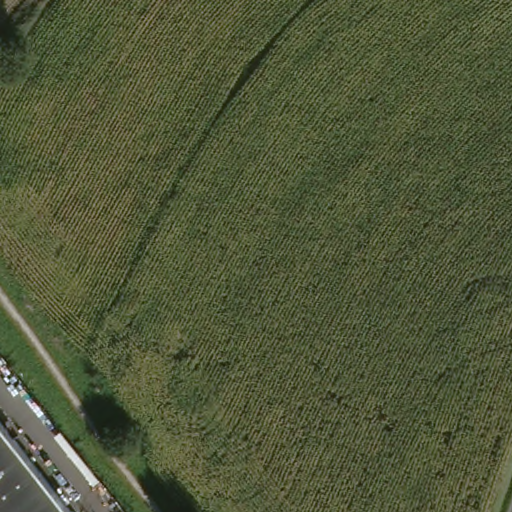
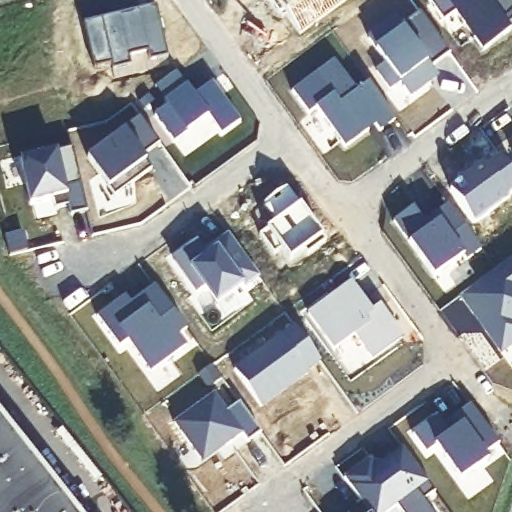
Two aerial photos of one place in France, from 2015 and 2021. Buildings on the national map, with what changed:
new [(299,33),(282,9),(278,12),(269,0),(346,0),(299,33)]
new [(512,1),(512,14),(501,21),(509,32),(483,51),(455,13),(442,22),(427,0),(511,0),(512,1)]
new [(155,7),(167,58),(148,63),(146,54),(128,58),(130,68),(112,72),(110,66),(93,71),(82,25),(155,7)]
new [(395,20),(400,28),(419,14),(449,55),(430,69),(434,75),(427,79),(430,83),(409,98),(399,84),(389,91),(376,72),(386,65),(368,40),(395,20)]
new [(344,148),(316,110),(308,116),(291,93),(333,62),(356,93),(368,84),(395,121),(379,132),(374,126),(367,131),(344,148)]
new [(164,102),(154,89),(175,73),(185,86),(193,97),(211,84),(239,123),(221,136),(207,116),(186,131),(187,133),(174,142),(154,115),(167,106),(164,102)]
new [(123,134),(121,130),(139,118),(159,145),(141,157),(151,170),(114,197),(87,160),(123,134)]
new [(53,199),(31,205),(20,162),(72,149),(86,212),(71,216),(68,206),(55,209),(53,199)]
new [(469,176),(467,174),(483,163),(486,168),(500,157),(512,174),(512,192),(472,221),(450,190),(469,176)]
new [(276,223),(263,205),(287,188),(326,242),(307,255),(304,251),(290,261),(281,250),(274,255),(259,236),(276,223)]
new [(412,208),(424,223),(426,221),(431,228),(438,223),(433,217),(448,206),(481,250),(466,261),(463,257),(434,278),(393,222),(412,208)]
new [(203,253),(212,247),(228,235),(259,278),(244,289),(242,286),(216,305),(203,288),(197,293),(173,261),(196,244),(203,253)]
new [(512,260),(512,346),(501,354),(460,297),(512,260)]
new [(365,303),(372,313),(380,307),(402,338),(372,360),(354,336),(334,350),(308,315),(350,284),(365,303)]
new [(130,304),(138,299),(154,287),(186,330),(178,337),(186,347),(149,374),(127,343),(118,349),(96,318),(125,297),(130,304)]
new [(294,327),(320,362),(306,372),(307,373),(261,408),(234,371),(294,327)]
new [(199,460),(174,424),(214,395),(227,413),(239,404),(261,434),(247,444),(242,436),(226,447),(202,464),(199,460)]
new [(442,426),(454,418),(470,406),(499,445),(484,457),(487,461),(460,481),(436,447),(426,454),(412,434),(436,418),(442,426)]
unchanged [(0,512),(0,421),(73,512),(0,512)]
new [(379,473),(402,450),(435,494),(424,502),(432,512),(400,512),(397,508),(392,512),(367,512),(361,504),(344,480),(370,461),(379,473)]
new [(367,512),(351,512),(361,504),(367,512)]

